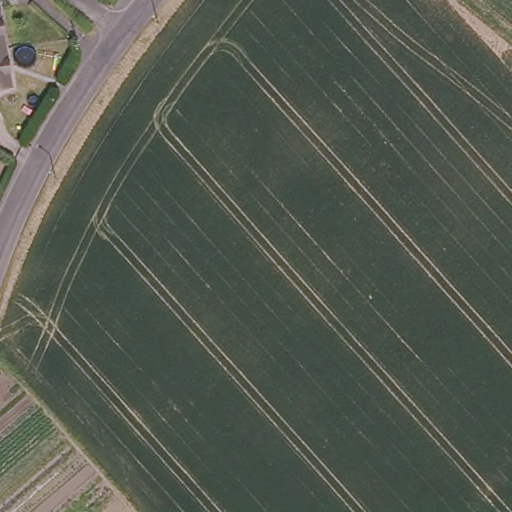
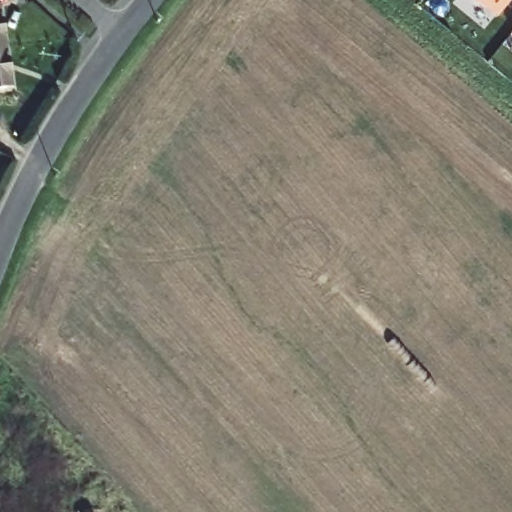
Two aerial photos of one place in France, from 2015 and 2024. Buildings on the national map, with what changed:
new [(478,0),(508,0),(496,14),(478,0)]
unchanged [(0,52),(0,27),(4,52),(0,52)]
unchanged [(0,92),(0,52),(4,52),(10,90),(0,92)]

